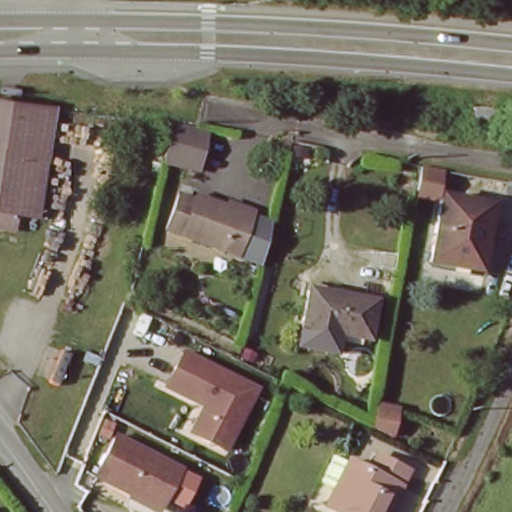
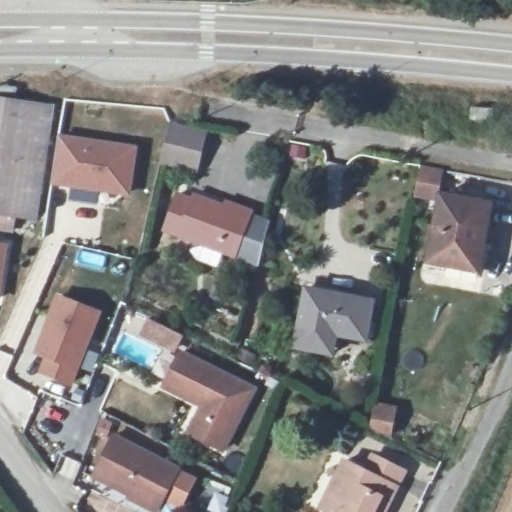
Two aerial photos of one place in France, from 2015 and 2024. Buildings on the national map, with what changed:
unchanged [(31,228),(0,220),(0,93),(53,100),(31,228)]
new [(169,121),(208,130),(198,173),(161,165),(169,121)]
new [(139,144),(131,197),(52,185),(59,135),(139,144)]
unchanged [(437,192),(492,205),(482,271),(426,264),(437,192)]
unchanged [(182,193),(256,209),(246,256),(152,233),(162,195),(180,200),(182,193)]
new [(9,245),(0,302),(0,244),(9,245)]
unchanged [(306,288),(371,301),(364,338),(299,325),(306,288)]
new [(103,311),(73,387),(37,373),(42,358),(32,355),(56,294),(103,311)]
new [(364,338),(371,301),(377,301),(369,344),(338,338),(334,358),(292,350),(297,324),(299,325),(364,338)]
new [(184,335),(177,352),(175,355),(139,336),(148,317),(184,335)]
unchanged [(198,405),(159,385),(177,352),(249,388),(218,449),(190,435),(184,432),(198,405)]
unchanged [(114,434),(179,468),(158,508),(93,475),(114,434)]
unchanged [(316,511),(341,461),(359,471),(368,453),(398,469),(375,512),(318,512),(316,511)]

